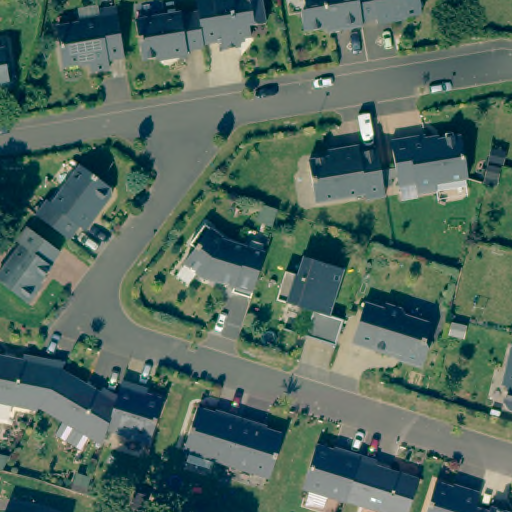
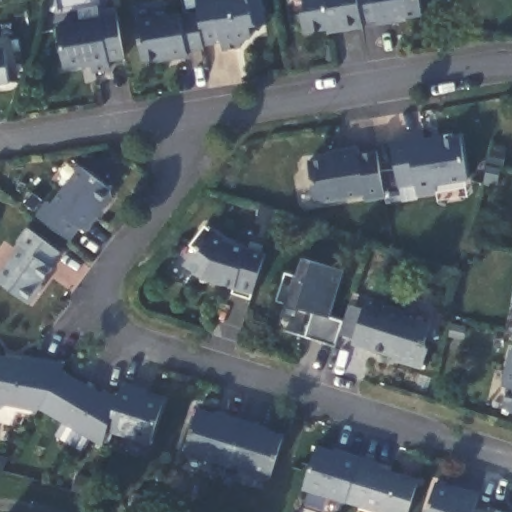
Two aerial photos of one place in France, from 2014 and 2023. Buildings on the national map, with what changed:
unchanged [(248,36),(237,38),(238,45),(220,48),(218,40),(200,43),(197,24),(195,11),(194,0),(260,0),(262,15),(263,23),(247,26),(248,36)]
unchanged [(359,21),(360,26),(337,30),(336,26),(302,31),(299,13),(303,6),(302,0),(356,0),(359,19),(359,21)]
unchanged [(393,18),(394,21),(375,24),(374,19),(359,21),(359,19),(356,0),(417,0),(419,14),(393,18)]
unchanged [(121,55),(105,58),(107,66),(89,68),(87,56),(79,58),(80,61),(61,64),(55,24),(77,21),(76,18),(97,14),(96,8),(113,6),(114,6),(121,55)]
unchanged [(184,48),(185,53),(166,56),(166,54),(140,58),(134,19),(178,11),(178,14),(195,11),(197,24),(200,43),(201,46),(184,48)]
unchanged [(13,80),(0,82),(0,48),(8,47),(13,80)]
unchanged [(427,137),(427,131),(462,131),(460,189),(427,188),(427,194),(408,194),(408,183),(391,183),(393,136),(427,137)]
unchanged [(360,148),(379,146),(386,192),(367,195),(366,190),(316,197),(310,155),(329,152),(328,146),(336,145),(359,141),(360,148)]
unchanged [(48,203),(53,206),(82,169),(111,191),(112,198),(105,207),(99,208),(93,216),(96,219),(85,233),(80,229),(69,242),(37,218),(48,203)]
unchanged [(222,240),(260,252),(246,297),(227,291),(228,286),(198,276),(180,261),(190,247),(185,243),(200,223),(222,240)]
unchanged [(38,293),(29,305),(0,283),(0,276),(22,247),(17,244),(28,230),(60,254),(50,268),(52,269),(36,291),(38,293)]
unchanged [(277,300),(286,271),(298,275),(304,257),(344,270),(329,315),(343,320),(335,346),(304,336),(312,311),(277,300)]
unchanged [(365,297),(384,303),(386,299),(402,304),(405,310),(430,318),(424,337),(427,344),(421,363),(398,355),(399,350),(353,335),(365,297)]
unchanged [(498,382),(506,345),(512,346),(512,408),(502,406),(499,400),(503,383),(498,382)]
unchanged [(2,356),(22,360),(23,353),(64,361),(60,367),(38,404),(36,407),(0,399),(0,353),(3,354),(2,356)]
unchanged [(60,367),(84,382),(83,384),(97,393),(101,386),(116,395),(105,427),(101,442),(38,404),(60,367)]
unchanged [(116,395),(121,379),(121,380),(137,385),(135,390),(162,398),(148,441),(105,427),(116,395)]
unchanged [(183,449),(197,407),(223,415),(224,413),(240,418),(231,446),(225,463),(183,449)]
unchanged [(256,423),(256,426),(282,434),(269,477),(225,463),(231,446),(240,418),(256,423)]
unchanged [(341,448),(342,446),(359,451),(352,472),(345,496),(344,496),(302,483),(315,440),(341,448)]
unchanged [(375,456),(373,463),(389,468),(389,466),(417,475),(405,512),(398,512),(345,496),(352,472),(359,451),(375,456)]
unchanged [(471,512),(424,512),(434,478),(461,486),(461,484),(478,489),(473,503),(471,512)]
unchanged [(473,503),(487,508),(489,503),(507,509),(506,511),(510,512),(471,512),(473,503)]

